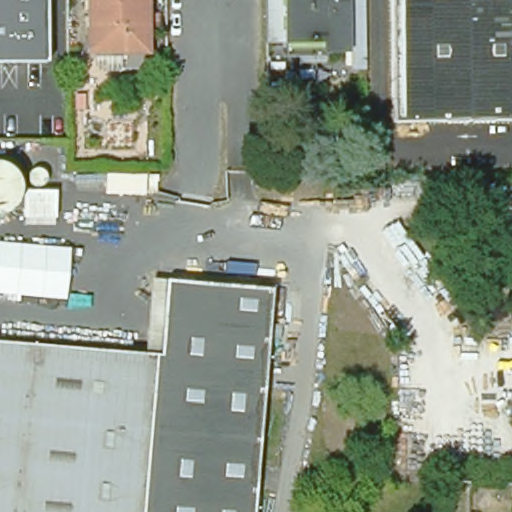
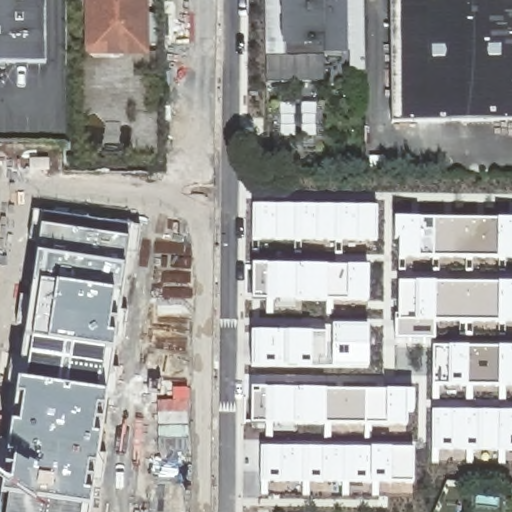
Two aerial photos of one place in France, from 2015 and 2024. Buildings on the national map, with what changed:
unchanged [(0,74),(0,0),(47,0),(48,73),(0,74)]
unchanged [(94,15),(88,16),(88,0),(145,0),(146,52),(125,52),(95,52),(95,47),(94,15)]
unchanged [(321,49),(306,49),(306,2),(282,2),(282,0),(341,0),(342,49),(321,49)]
unchanged [(512,0),(512,126),(388,127),(387,0),(512,0)]
unchanged [(306,2),(306,49),(321,49),(321,56),(282,56),(282,2),(306,2)]
new [(253,205),(377,206),(377,240),(252,239),(253,205)]
new [(124,268),(114,338),(112,352),(105,396),(87,509),(87,512),(0,512),(0,500),(1,497),(17,383),(24,340),(37,255),(41,227),(44,212),(130,225),(128,240),(124,268)]
new [(399,238),(395,238),(396,219),(512,220),(512,258),(399,256),(399,238)]
new [(367,301),(254,300),(254,265),(368,267),(367,301)]
demolished [(157,356),(164,281),(268,290),(250,512),(0,512),(0,344),(151,356),(157,356)]
new [(512,284),(512,320),(435,320),(435,338),(398,338),(399,283),(512,284)]
new [(369,326),(368,367),(333,367),(312,367),(252,366),(252,332),(312,332),(325,332),(325,325),(333,326),(369,326)]
new [(435,348),(512,349),(512,385),(435,386),(435,348)]
new [(252,390),(412,392),(412,411),(407,411),(407,425),(251,423),(252,390)]
new [(433,411),(512,411),(512,450),(432,450),(433,411)]
new [(262,447),(412,450),(412,482),(261,481),(262,447)]

